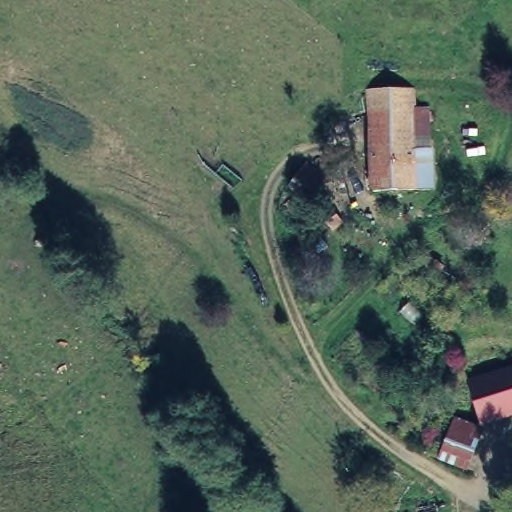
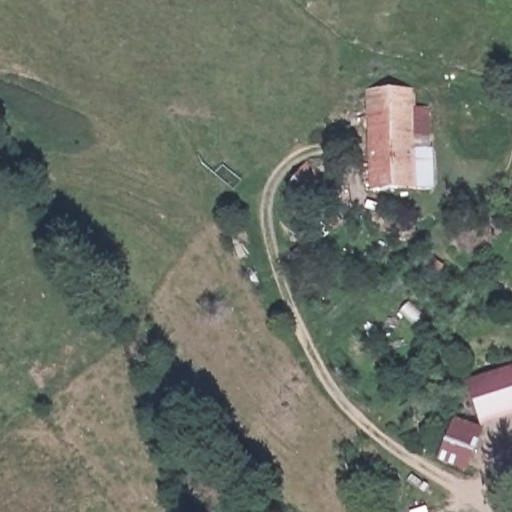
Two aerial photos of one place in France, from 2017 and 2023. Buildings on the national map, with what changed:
unchanged [(410,95),(410,108),(412,190),(363,187),(358,86),(410,95)]
unchanged [(428,106),(430,148),(433,148),(433,191),(412,190),(410,108),(428,106)]
unchanged [(338,172),(314,202),(288,189),(304,150),(338,172)]
unchanged [(512,365),(512,416),(480,425),(466,379),(512,365)]
unchanged [(466,472),(435,460),(451,416),(482,426),(466,472)]

